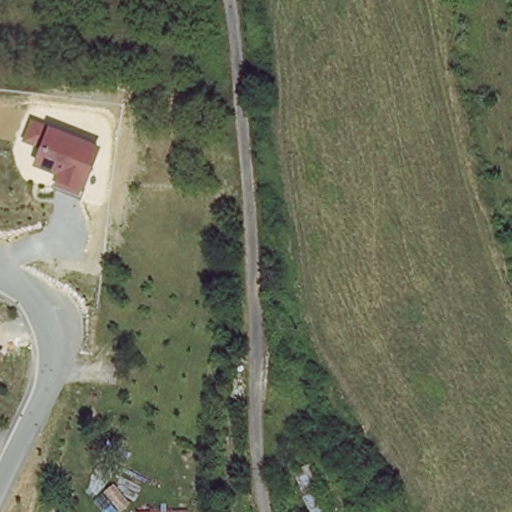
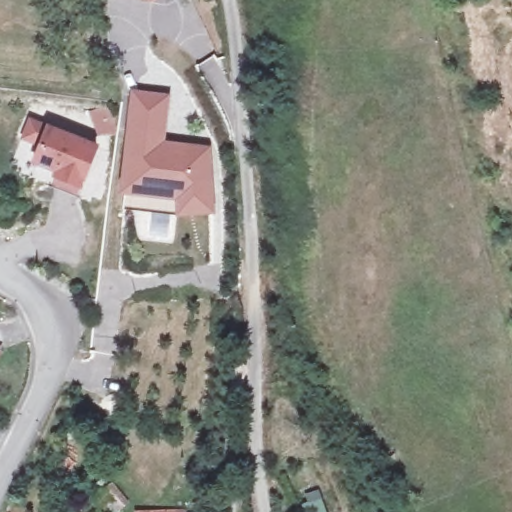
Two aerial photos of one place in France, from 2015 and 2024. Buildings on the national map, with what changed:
new [(155,1),(148,0),(155,0),(155,1)]
new [(131,95),(131,90),(171,95),(166,141),(211,147),(215,214),(176,218),(175,201),(119,196),(126,131),(101,139),(89,113),(131,95)]
unchanged [(50,186),(54,172),(31,165),(35,148),(21,146),(27,119),(48,125),(98,142),(82,197),(50,186)]
unchanged [(3,352),(0,356),(0,350),(3,352)]
unchanged [(180,512),(137,512),(138,509),(180,510),(180,512)]

